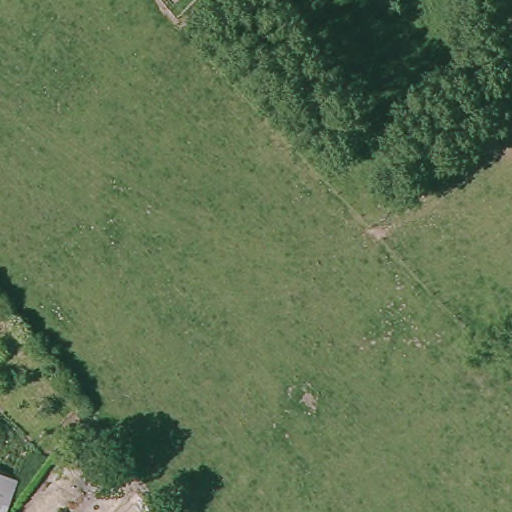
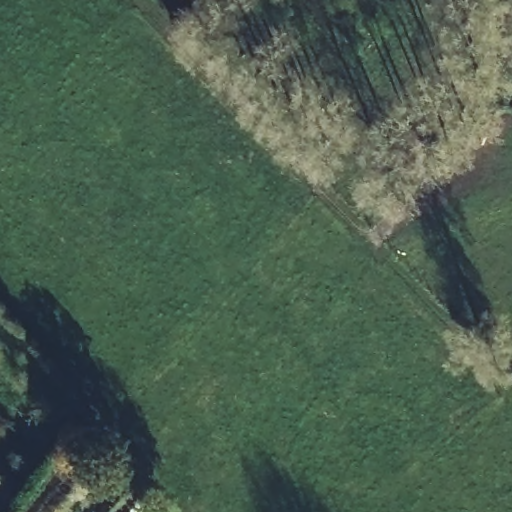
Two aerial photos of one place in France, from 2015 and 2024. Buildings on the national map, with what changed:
unchanged [(7,477),(0,500),(0,475),(7,477)]

